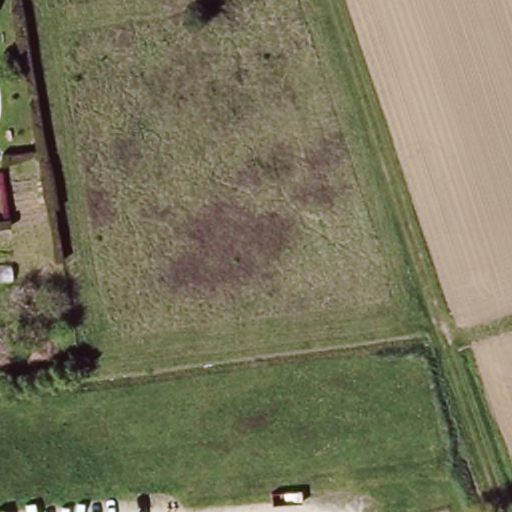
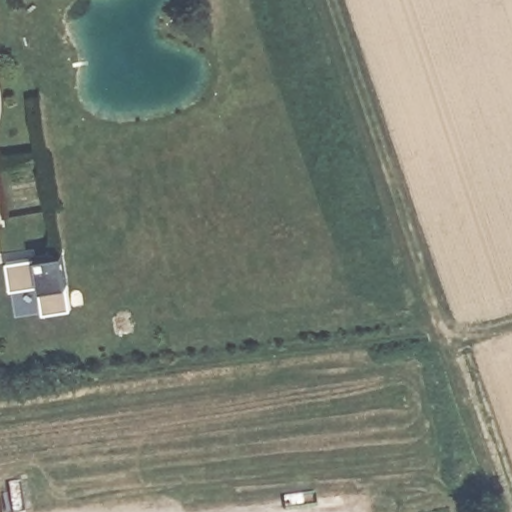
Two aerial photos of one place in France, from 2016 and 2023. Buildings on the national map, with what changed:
new [(62,253),(70,310),(42,313),(38,286),(10,290),(7,262),(62,253)]

